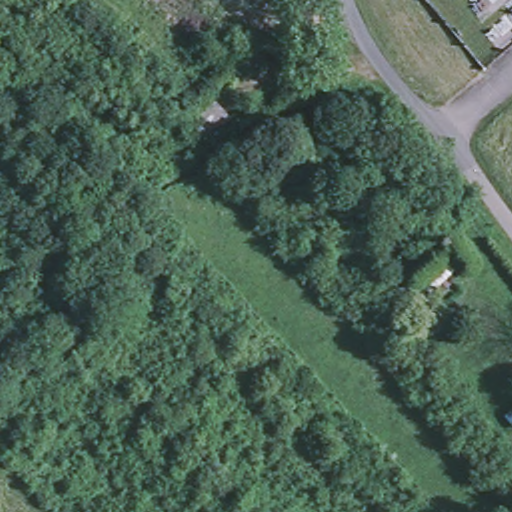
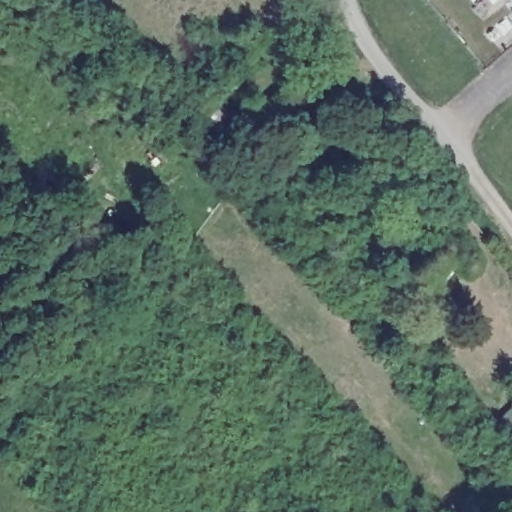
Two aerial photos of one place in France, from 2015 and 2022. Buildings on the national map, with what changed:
unchanged [(217,97),(233,116),(207,140),(191,124),(217,97)]

